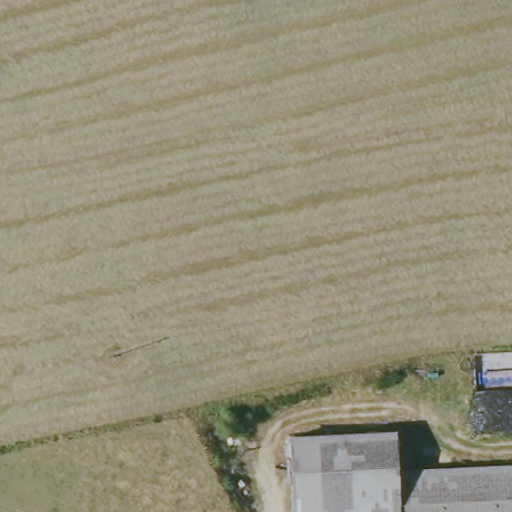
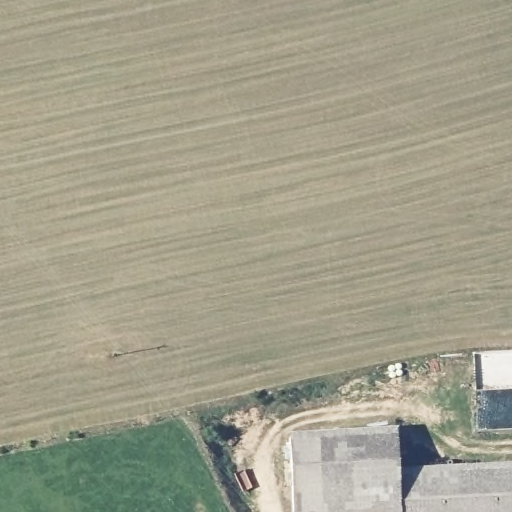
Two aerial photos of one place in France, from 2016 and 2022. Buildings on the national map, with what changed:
unchanged [(391,512),(291,512),(287,438),(391,429),(394,466),(512,458),(512,512),(396,512),(396,511),(391,512)]

